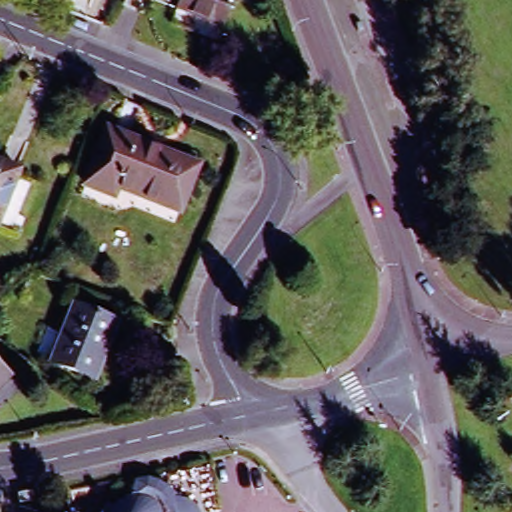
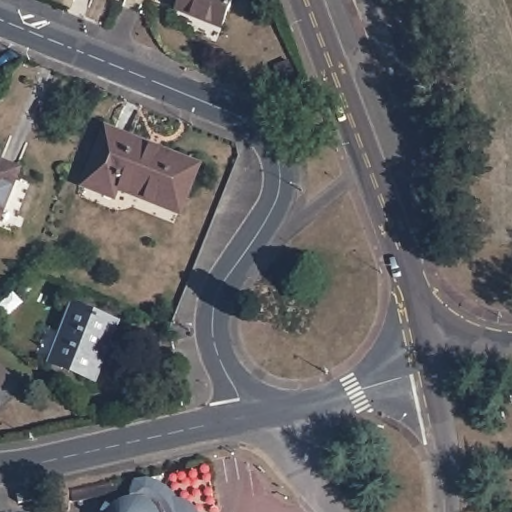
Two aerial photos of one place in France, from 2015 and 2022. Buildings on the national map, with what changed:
unchanged [(173,9),(177,0),(229,0),(218,27),(173,9)]
unchanged [(118,186),(115,196),(87,185),(109,130),(198,166),(180,211),(118,186)]
unchanged [(0,216),(0,169),(17,175),(0,216)]
unchanged [(45,366),(68,310),(113,328),(90,384),(45,366)]
unchanged [(0,394),(0,370),(12,382),(0,394)]
unchanged [(107,508),(108,507),(108,506),(110,504),(111,502),(112,500),(114,498),(120,502),(122,500),(123,499),(125,498),(127,497),(128,496),(130,495),(132,495),(134,494),(135,494),(137,493),(140,493),(141,475),(154,473),(165,477),(174,483),(182,489),(187,499),(191,497),(197,502),(201,510),(206,510),(206,512),(107,512),(107,511),(107,508)]

